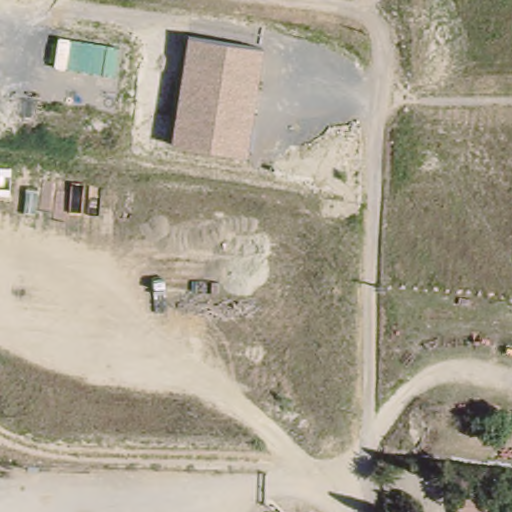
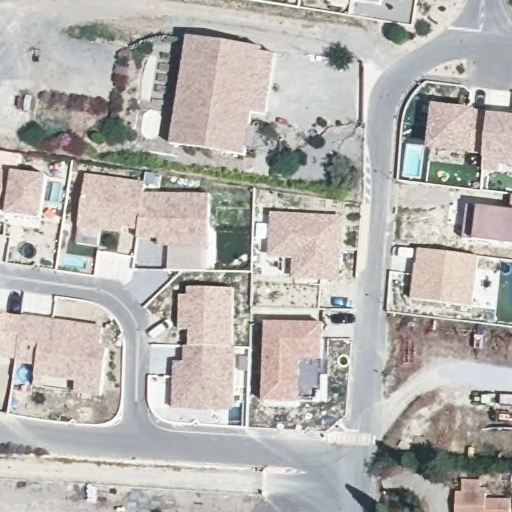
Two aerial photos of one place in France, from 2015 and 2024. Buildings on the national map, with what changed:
new [(352,2),(352,0),(383,0),(383,5),(352,2)]
new [(399,0),(404,0),(404,1),(399,0)]
unchanged [(189,36),(266,49),(251,155),(174,139),(189,36)]
new [(432,146),(436,108),(489,114),(486,151),(432,146)]
new [(489,114),(512,116),(512,163),(502,162),(500,174),(484,172),(486,151),(489,114)]
new [(48,176),(42,218),(8,215),(9,212),(0,210),(0,170),(48,176)]
new [(143,194),(138,231),(123,229),(123,232),(78,226),(86,174),(145,182),(143,194)]
new [(168,247),(168,240),(138,239),(144,193),(211,195),(209,247),(168,247)]
new [(464,239),(469,206),(480,207),(510,209),(512,195),(512,245),(476,241),(464,239)]
new [(341,281),(292,278),(294,259),(268,257),(271,212),(345,217),(341,281)]
new [(7,237),(2,262),(0,262),(0,235),(7,237)]
new [(473,306),(412,301),(419,250),(479,258),(473,306)]
new [(190,347),(191,330),(181,330),(181,296),(189,295),(189,288),(234,288),(233,347),(190,347)]
new [(9,312),(9,315),(23,318),(18,362),(1,358),(0,358),(0,310),(9,312)]
new [(76,395),(77,383),(36,379),(38,367),(17,364),(23,318),(104,330),(100,348),(108,350),(101,396),(76,395)]
new [(266,323),(323,323),(323,358),(300,358),(299,402),(264,400),(266,323)]
new [(173,410),(174,362),(184,362),(185,347),(236,347),(234,411),(173,410)]
new [(481,481),(480,492),(488,493),(488,502),(512,502),(512,512),(456,512),(457,492),(463,492),(463,480),(481,481)]

